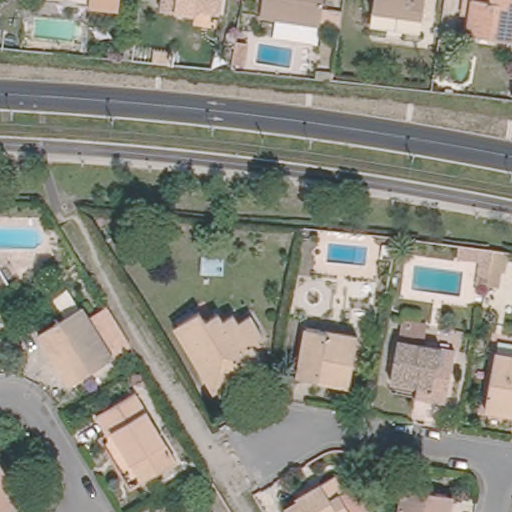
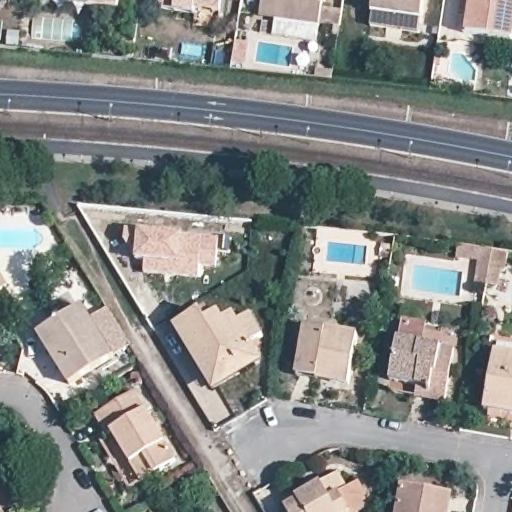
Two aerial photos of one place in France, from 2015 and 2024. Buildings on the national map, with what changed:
unchanged [(117,7),(88,4),(89,0),(118,0),(117,7)]
unchanged [(194,12),(159,7),(161,0),(196,0),(195,9),(194,12)]
unchanged [(196,0),(221,0),(220,11),(195,9),(196,0)]
unchanged [(318,24),(259,14),(261,0),(322,0),(318,24)]
unchanged [(371,9),(373,0),(422,0),(420,17),(371,9)]
unchanged [(458,12),(461,0),(470,0),(467,14),(458,12)]
unchanged [(512,39),(464,32),(467,14),(469,0),(512,0),(512,39)]
new [(137,230),(218,235),(215,267),(199,266),(197,277),(142,273),(143,261),(134,260),(137,230)]
unchanged [(380,257),(381,243),(390,244),(388,258),(380,257)]
unchanged [(493,268),(506,271),(503,285),(490,283),(493,268)]
unchanged [(469,273),(480,275),(478,296),(466,295),(469,273)]
unchanged [(40,328),(85,300),(92,312),(108,303),(134,344),(117,352),(80,375),(72,380),(63,366),(62,365),(40,328)]
unchanged [(213,380),(178,324),(202,309),(208,319),(221,311),(225,319),(236,312),(241,321),(252,313),(266,335),(254,342),(266,360),(252,369),(218,390),(213,380)]
unchanged [(414,385),(388,380),(396,337),(399,316),(424,321),(420,342),(452,348),(443,401),(428,398),(413,395),(414,385)]
unchanged [(296,366),(302,325),(355,335),(345,384),(329,381),(294,375),(296,366)]
unchanged [(498,351),(512,354),(512,413),(488,409),(498,351)]
unchanged [(104,432),(109,429),(98,411),(139,387),(179,454),(144,475),(134,481),(104,432)]
unchanged [(0,512),(0,451),(24,491),(4,503),(7,510),(5,512),(0,512)]
unchanged [(331,477),(351,487),(359,499),(357,512),(279,512),(277,509),(331,477)]
unchanged [(442,493),(450,494),(447,512),(396,512),(401,485),(442,493)]

